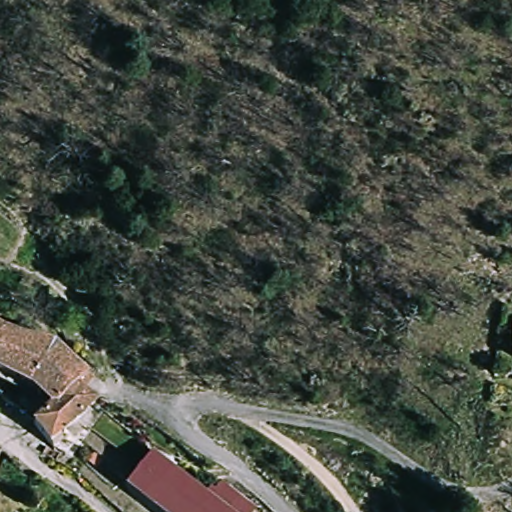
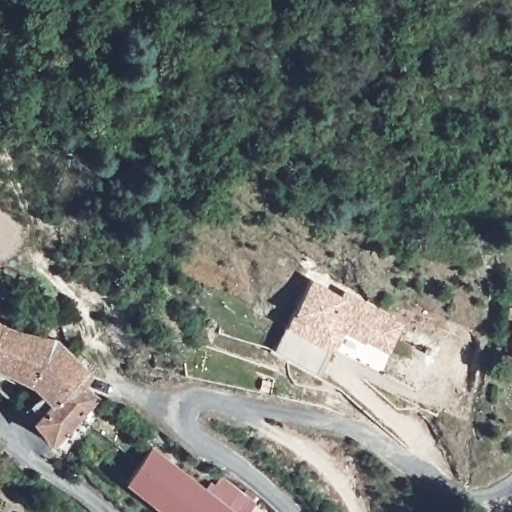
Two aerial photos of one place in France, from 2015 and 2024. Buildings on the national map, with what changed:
new [(388,355),(364,340),(362,343),(343,332),(332,351),(318,373),(273,349),(286,325),(293,312),(310,279),(342,295),(344,290),(404,325),(388,355)]
unchanged [(10,325),(0,342),(0,318),(10,325)]
unchanged [(23,375),(0,364),(0,342),(10,325),(58,337),(23,375)]
unchanged [(88,359),(79,368),(31,411),(12,391),(23,375),(58,337),(88,359)]
unchanged [(31,411),(79,368),(93,384),(65,411),(85,425),(74,443),(53,436),(31,411)]
unchanged [(221,480),(240,495),(230,508),(235,512),(169,512),(138,488),(130,482),(131,481),(155,450),(210,492),(221,480)]
new [(230,508),(240,495),(254,506),(249,512),(235,512),(230,508)]

